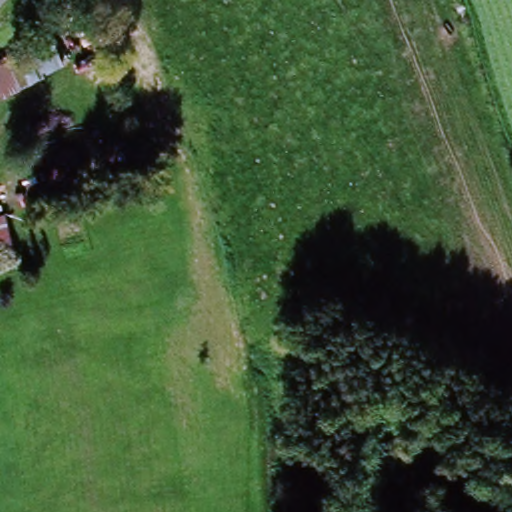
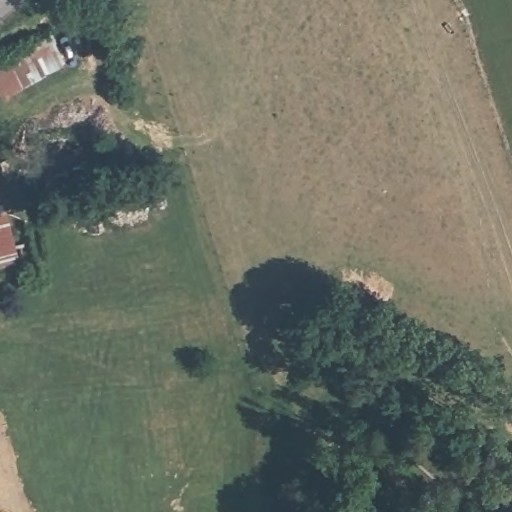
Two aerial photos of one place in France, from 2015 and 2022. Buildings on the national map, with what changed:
unchanged [(7,216),(19,266),(0,270),(0,217),(7,216)]

